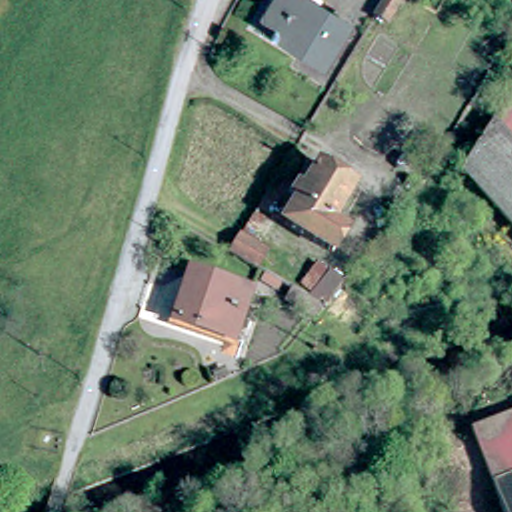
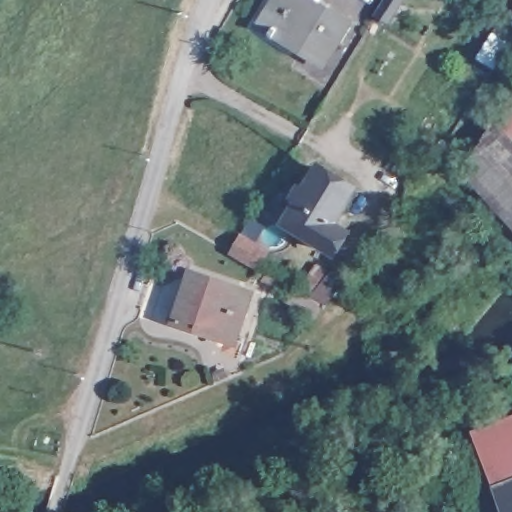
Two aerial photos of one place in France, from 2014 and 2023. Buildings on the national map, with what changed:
unchanged [(275,0),(289,0),(290,1),(291,0),(309,0),(313,3),(315,9),(311,14),(341,32),(317,72),(255,34),(275,0)]
unchanged [(393,22),(380,15),(389,0),(407,0),(393,22)]
unchanged [(474,182),(497,145),(512,120),(512,225),(498,209),(474,182)]
unchanged [(303,212),(301,205),(313,185),(316,183),(320,184),(327,173),(364,195),(346,228),(356,234),(341,258),(295,229),(303,212)]
unchanged [(246,232),(272,249),(261,269),(235,253),(246,232)]
unchanged [(290,300),(296,290),(312,299),(318,292),(308,283),(324,266),(334,274),(346,284),(325,308),(317,317),(291,300),(290,300)]
unchanged [(191,278),(206,284),(249,298),(232,346),(175,326),(191,278)]
unchanged [(512,483),(490,492),(471,441),(512,425),(512,483)]
unchanged [(512,483),(512,512),(498,512),(490,492),(512,483)]

